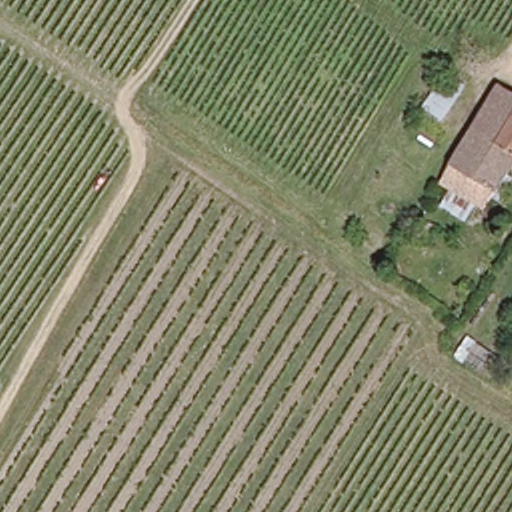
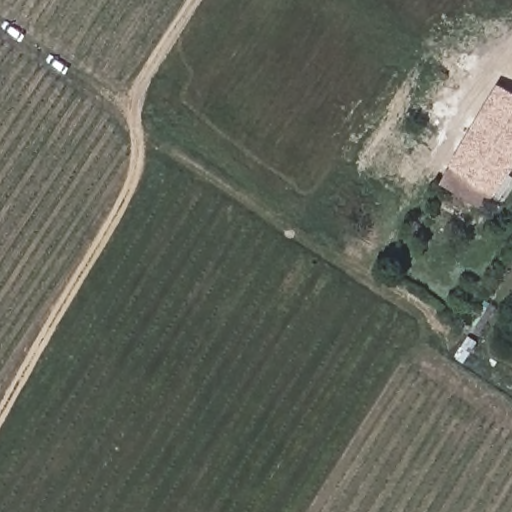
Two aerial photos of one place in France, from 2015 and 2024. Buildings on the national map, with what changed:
unchanged [(466,84),(439,128),(417,116),(448,70),(466,84)]
unchanged [(459,147),(488,97),(512,111),(512,164),(487,204),(441,176),(459,147)]

